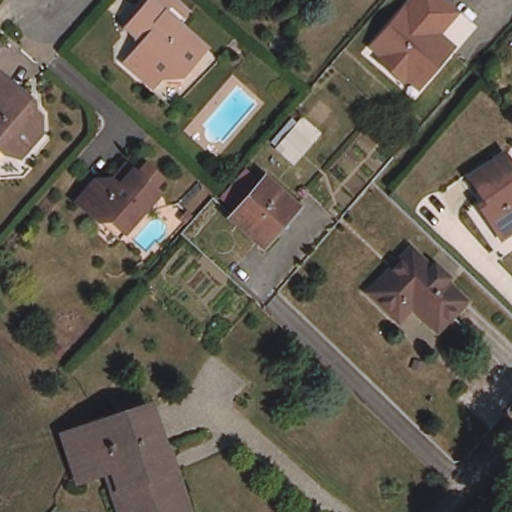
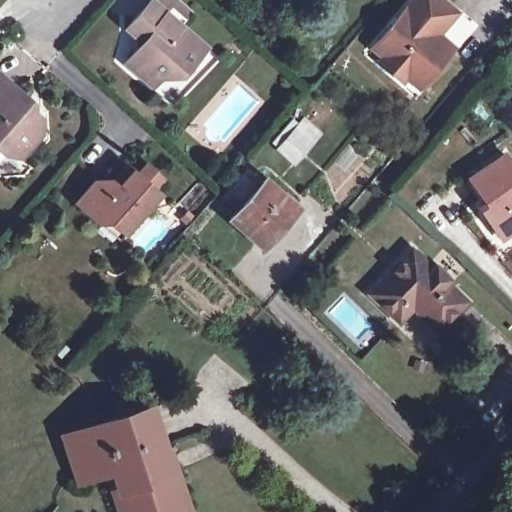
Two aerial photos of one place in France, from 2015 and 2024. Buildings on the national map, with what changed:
unchanged [(141,79),(122,62),(142,41),(129,29),(155,0),(176,0),(192,15),(185,27),(207,51),(182,79),(158,80),(151,88),(141,79)]
unchanged [(401,81),(379,62),(382,58),(371,48),(375,44),(414,0),(439,0),(451,10),(455,14),(435,38),(449,51),(420,83),(416,87),(404,77),(401,81)]
unchanged [(0,149),(0,73),(4,76),(15,86),(15,96),(37,117),(38,136),(23,152),(20,156),(3,152),(0,149)]
unchanged [(280,152),(296,134),(305,125),(319,138),(310,147),(294,165),(280,152)]
unchanged [(503,237),(482,206),(490,201),(472,175),(507,151),(512,158),(512,231),(503,237)]
unchanged [(98,221),(77,202),(98,177),(112,177),(124,164),(132,172),(158,194),(127,231),(120,239),(98,221)]
unchanged [(172,186),(177,190),(171,198),(165,194),(172,186)]
unchanged [(266,186),(295,214),(262,249),(233,221),(266,186)]
unchanged [(387,312),(366,289),(410,248),(429,270),(432,266),(445,280),(442,283),(461,303),(432,331),(408,306),(394,320),(387,312)]
unchanged [(178,470),(189,512),(188,512),(122,512),(107,470),(81,478),(67,433),(152,406),(175,471),(178,470)]

